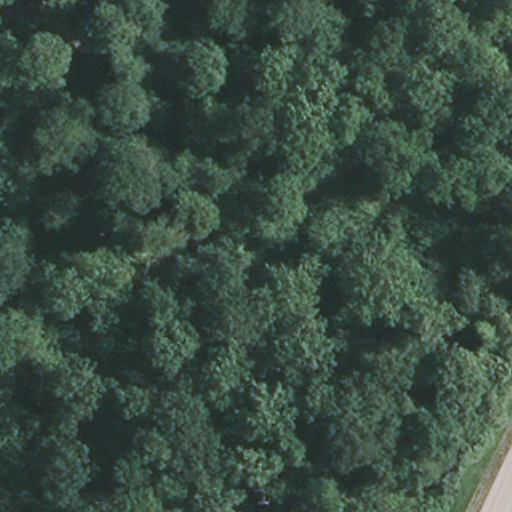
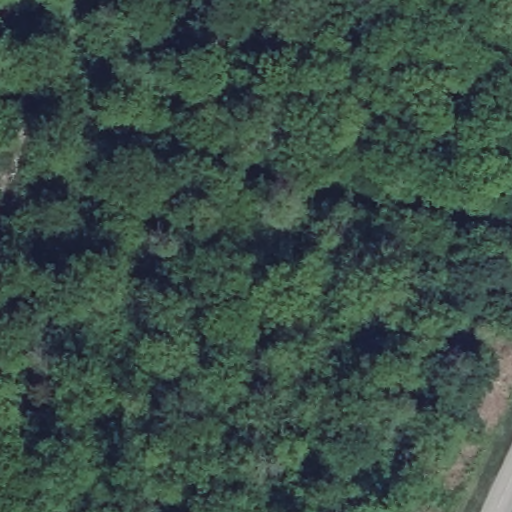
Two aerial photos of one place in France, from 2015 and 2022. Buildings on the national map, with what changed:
[]

